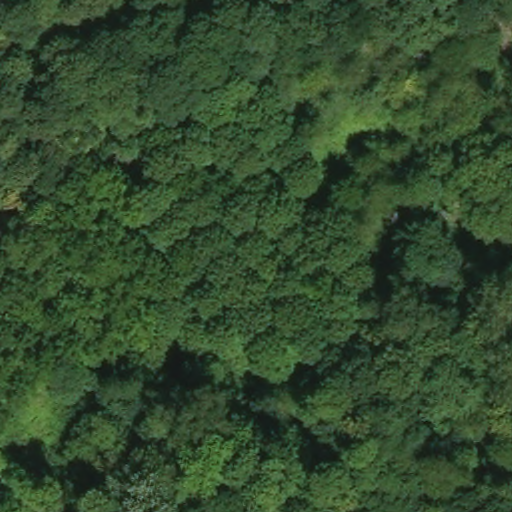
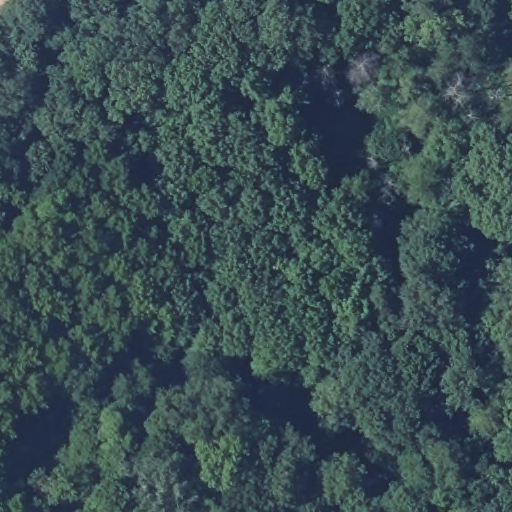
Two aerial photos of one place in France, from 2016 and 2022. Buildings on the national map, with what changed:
[]

